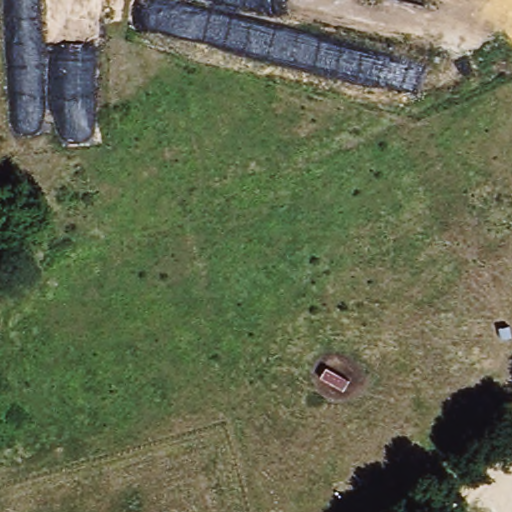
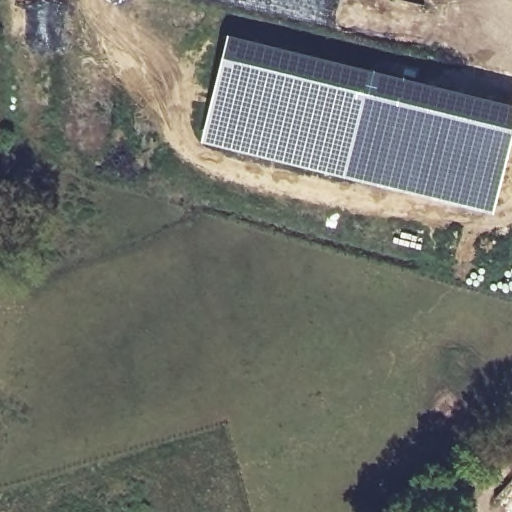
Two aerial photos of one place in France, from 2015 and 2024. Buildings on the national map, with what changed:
new [(228,32),(512,102),(512,135),(493,213),(412,192),(200,141),(228,32)]

